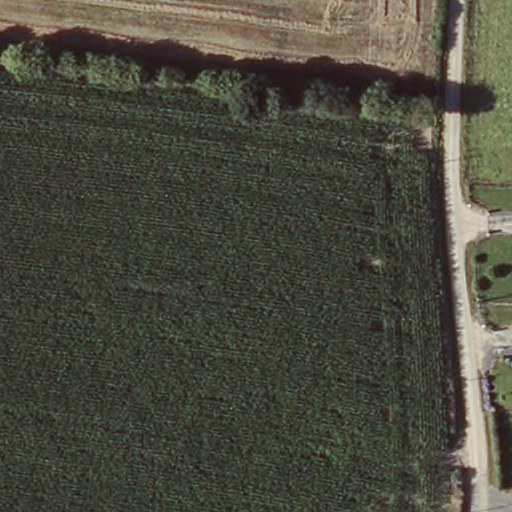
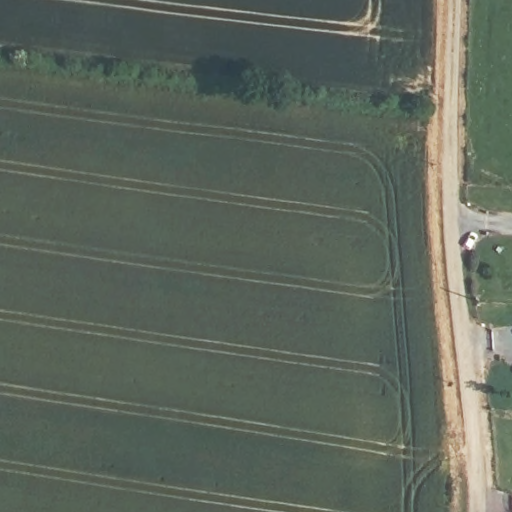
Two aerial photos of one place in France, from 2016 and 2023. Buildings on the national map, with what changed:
[]

